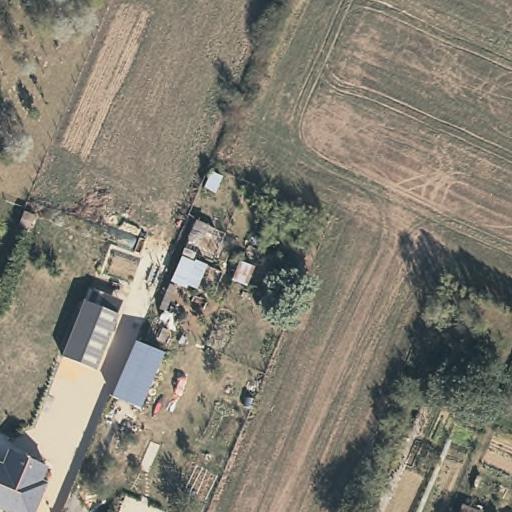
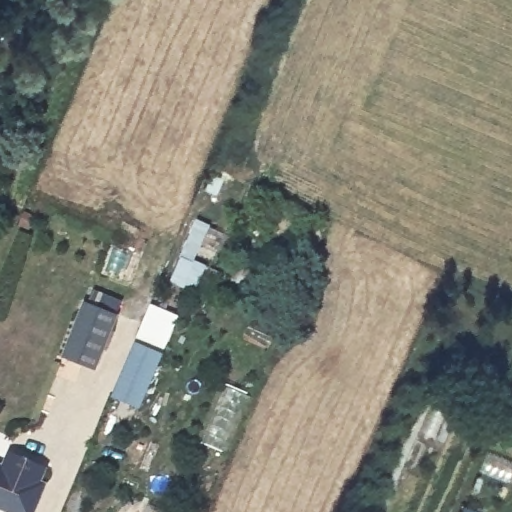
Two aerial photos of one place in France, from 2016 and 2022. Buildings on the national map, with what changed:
unchanged [(97,367),(65,353),(87,297),(120,311),(97,367)]
unchanged [(164,350),(141,405),(112,393),(136,338),(164,350)]
unchanged [(4,463),(10,448),(47,463),(41,479),(47,481),(34,512),(29,512),(15,506),(14,511),(0,505),(0,462),(4,463)]

